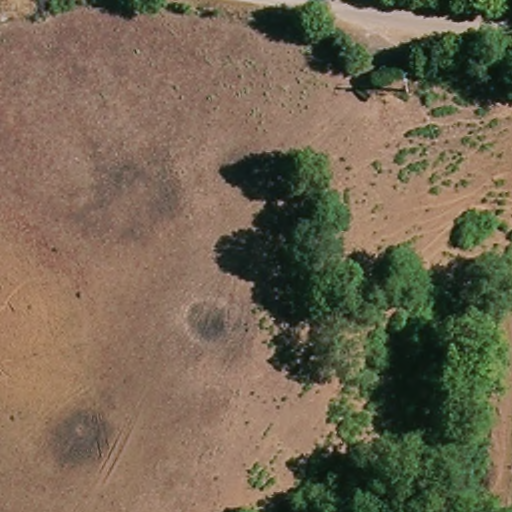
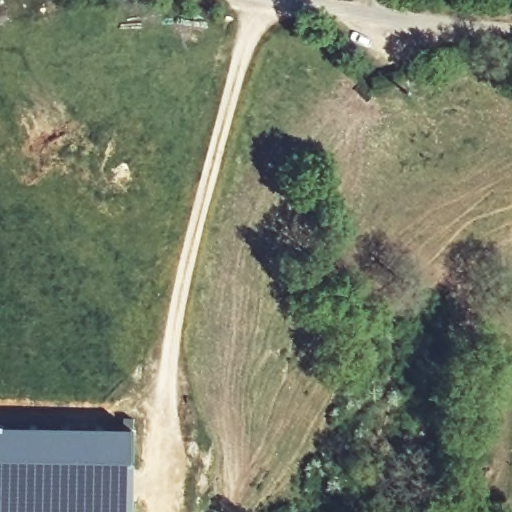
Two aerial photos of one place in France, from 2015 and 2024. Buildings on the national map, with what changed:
new [(131,512),(0,512),(0,430),(132,431),(131,512)]

